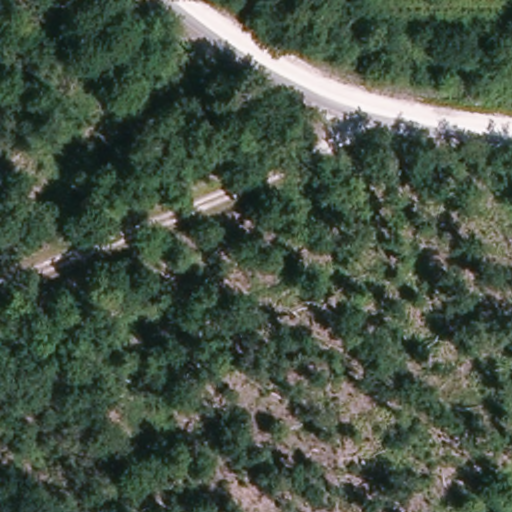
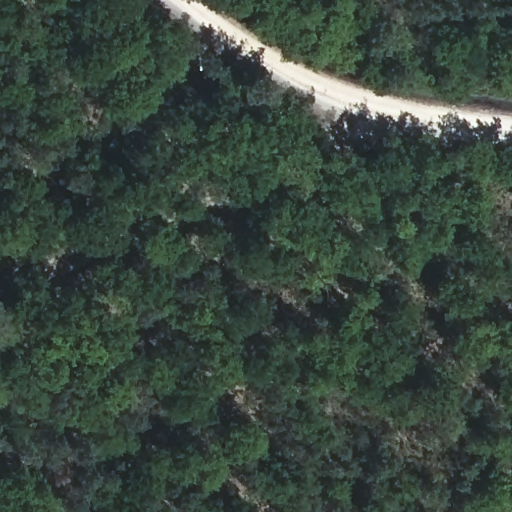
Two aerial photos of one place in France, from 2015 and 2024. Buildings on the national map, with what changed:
[]

